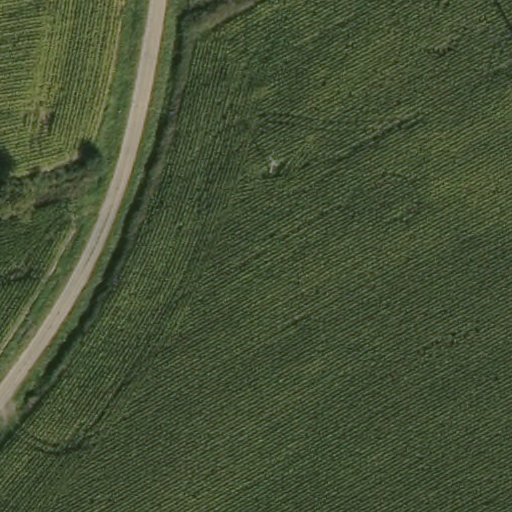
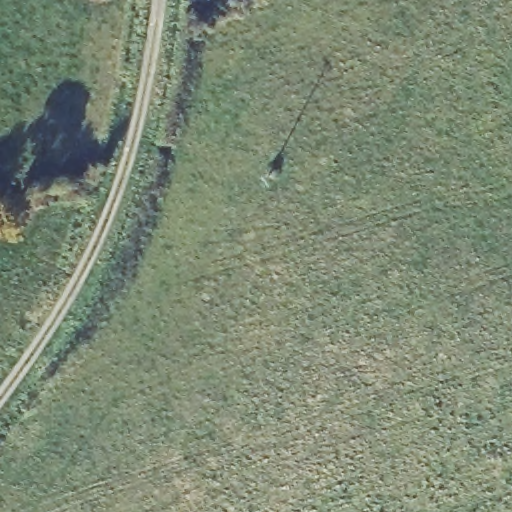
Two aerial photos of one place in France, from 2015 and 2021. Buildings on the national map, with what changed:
[]

